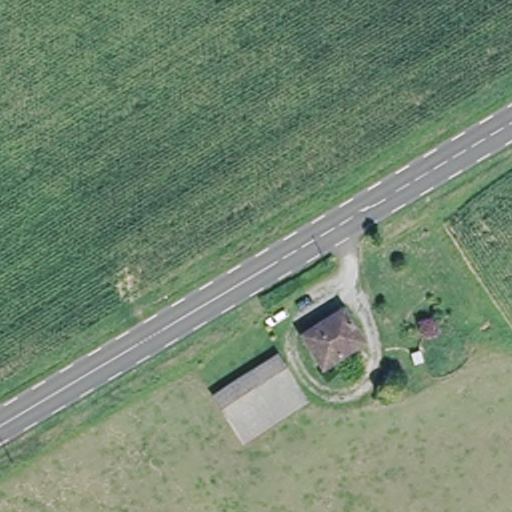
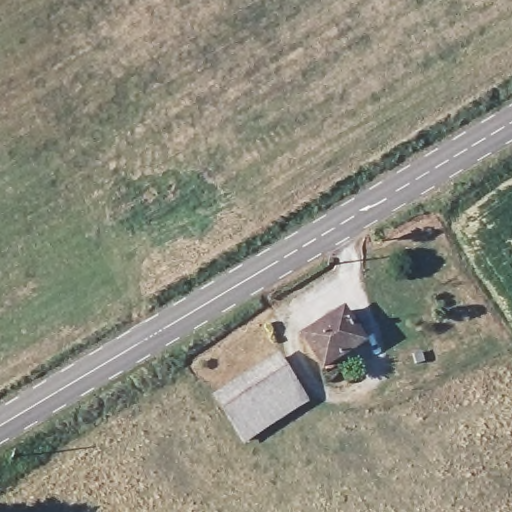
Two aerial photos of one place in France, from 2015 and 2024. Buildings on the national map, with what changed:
unchanged [(349,312),(367,345),(325,367),(309,334),(349,312)]
unchanged [(303,406),(247,439),(219,393),(275,360),(303,406)]

